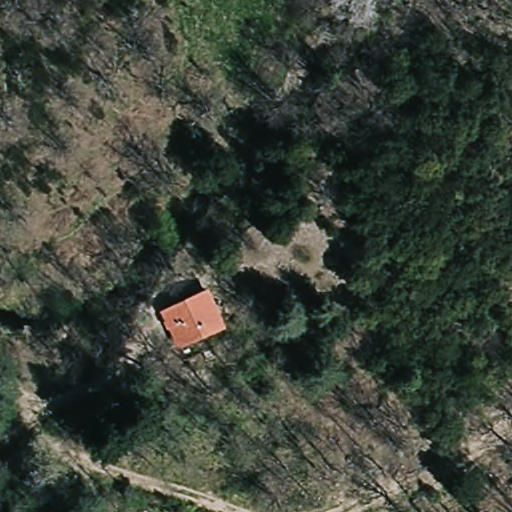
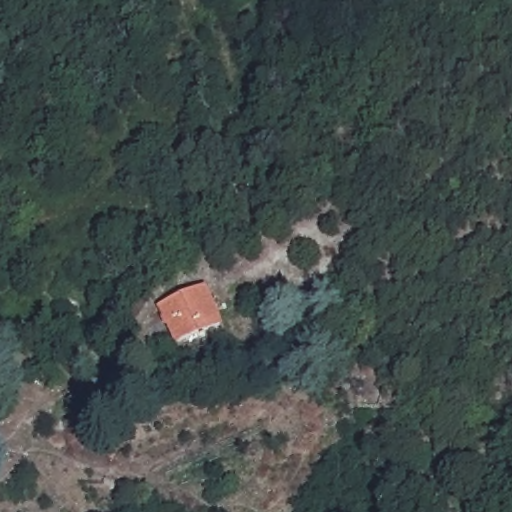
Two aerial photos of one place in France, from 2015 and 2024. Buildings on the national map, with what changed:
unchanged [(165,306),(181,300),(210,288),(224,328),(180,343),(165,306)]

